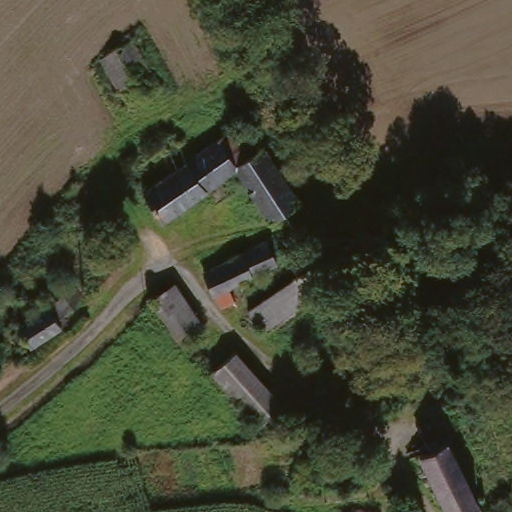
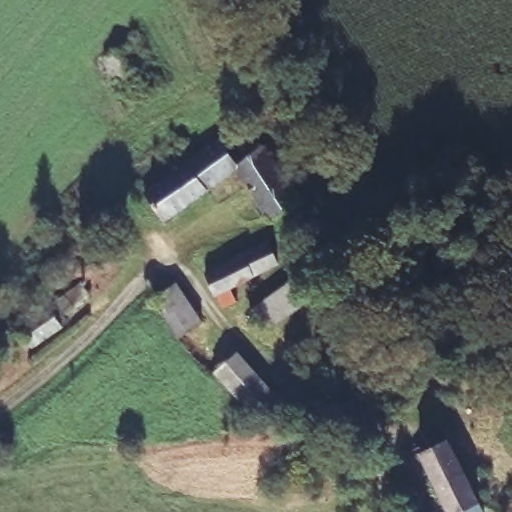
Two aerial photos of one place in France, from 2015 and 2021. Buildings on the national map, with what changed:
unchanged [(96,62),(133,42),(158,85),(121,106),(96,62)]
unchanged [(221,149),(252,129),(268,154),(236,175),(221,149)]
unchanged [(155,208),(149,199),(147,196),(189,167),(219,146),(221,149),(236,175),(166,225),(153,235),(145,222),(151,214),(155,208)]
unchanged [(268,154),(302,207),(303,208),(303,209),(269,229),(236,175),(268,154)]
unchanged [(216,299),(212,292),(203,278),(240,257),(266,243),(275,260),(276,263),(262,272),(253,276),(216,299)]
unchanged [(310,303),(263,337),(246,312),(293,278),(310,303)]
unchanged [(64,283),(82,300),(69,312),(74,316),(40,347),(38,345),(28,332),(23,327),(64,283)]
unchanged [(161,327),(146,307),(169,292),(185,315),(195,329),(174,344),(161,327)]
unchanged [(224,380),(218,372),(238,358),(276,416),(261,427),(224,380)]
unchanged [(446,512),(425,453),(448,443),(469,506),(446,512)]

